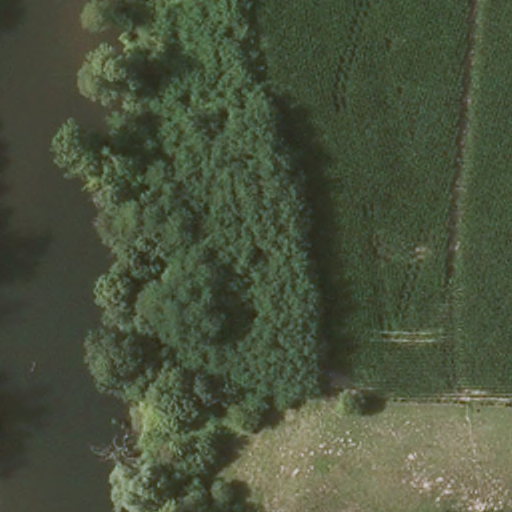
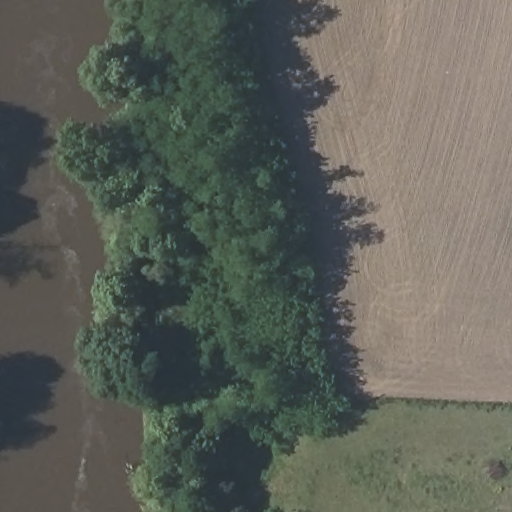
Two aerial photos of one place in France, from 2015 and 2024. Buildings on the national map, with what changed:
[]

